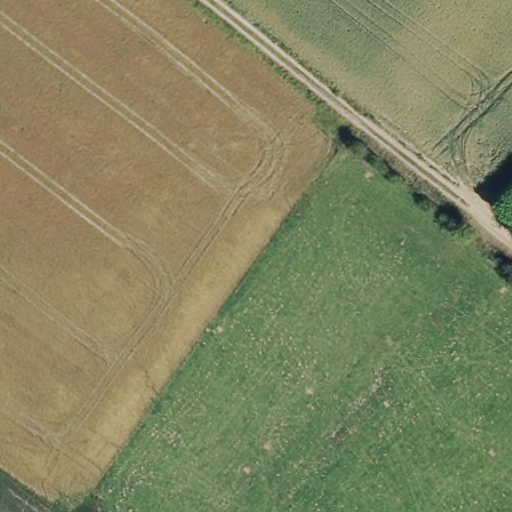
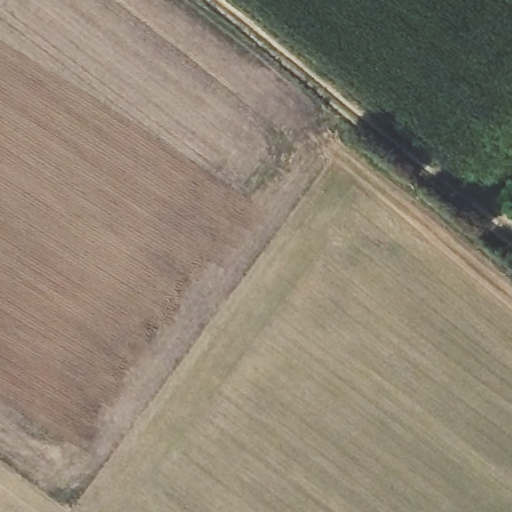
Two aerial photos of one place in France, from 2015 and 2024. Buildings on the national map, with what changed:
unchanged [(507,197),(512,191),(512,202),(507,197)]

